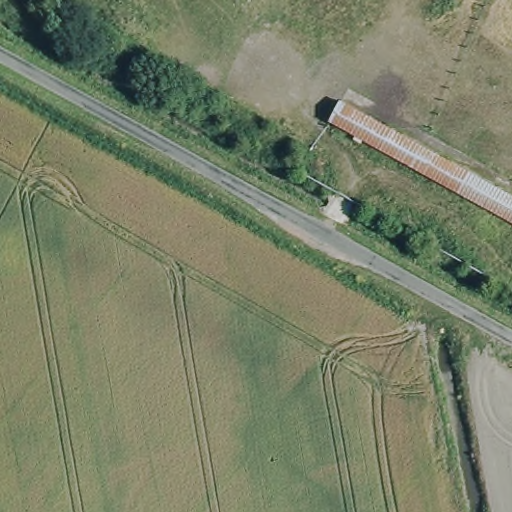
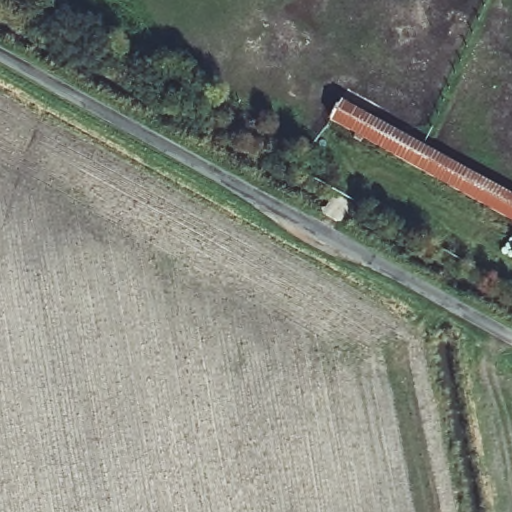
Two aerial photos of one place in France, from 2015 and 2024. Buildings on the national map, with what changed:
unchanged [(338,98),(512,193),(512,222),(329,121),(338,98)]

